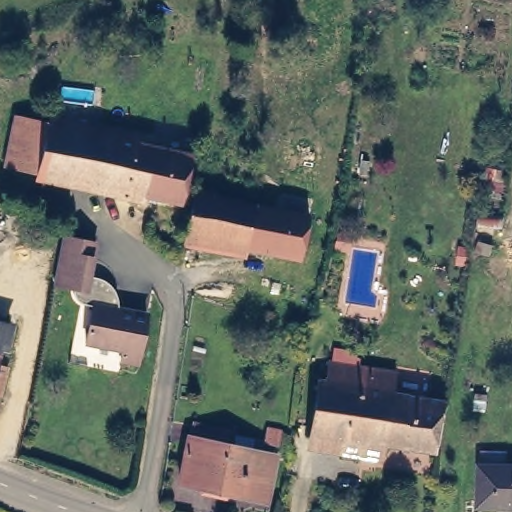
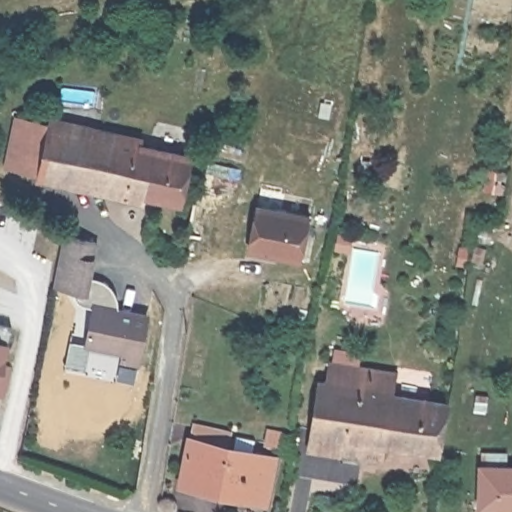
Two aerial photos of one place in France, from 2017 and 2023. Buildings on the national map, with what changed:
unchanged [(38,166),(13,160),(24,113),(50,118),(38,166)]
unchanged [(135,137),(137,139),(165,145),(168,135),(178,138),(177,147),(192,150),(181,198),(38,166),(50,118),(135,137)]
unchanged [(308,224),(302,266),(189,243),(197,202),(308,224)]
unchanged [(65,239),(97,244),(90,279),(92,279),(87,294),(76,291),(63,288),(57,286),(65,239)]
unchanged [(87,294),(92,279),(93,279),(94,279),(95,279),(95,280),(97,280),(98,280),(99,280),(100,281),(101,281),(102,281),(102,282),(103,282),(105,282),(105,283),(106,283),(107,283),(107,284),(108,284),(108,285),(110,285),(110,286),(111,286),(111,287),(112,287),(112,288),(113,289),(114,290),(115,290),(115,291),(115,292),(116,292),(117,293),(117,294),(117,295),(117,296),(118,296),(118,297),(118,298),(119,299),(120,300),(120,301),(120,302),(120,303),(120,304),(120,305),(120,306),(120,307),(120,308),(120,309),(120,310),(120,313),(152,319),(143,365),(127,362),(127,352),(92,345),(99,308),(98,308),(97,308),(95,308),(94,308),(93,308),(92,307),(91,307),(90,307),(89,307),(87,307),(85,306),(84,306),(83,306),(83,305),(82,305),(82,304),(80,304),(80,303),(79,302),(78,301),(78,300),(77,300),(77,299),(77,298),(77,297),(76,296),(76,295),(76,294),(76,293),(75,293),(76,292),(76,291),(87,294)]
unchanged [(17,340),(11,361),(4,360),(0,376),(0,336),(17,340)]
unchanged [(388,439),(386,456),(343,451),(343,439),(313,436),(319,380),(327,381),(328,364),(393,371),(392,393),(447,399),(442,446),(388,439)]
unchanged [(10,380),(3,407),(0,406),(0,376),(10,380)]
unchanged [(277,463),(265,509),(180,485),(192,444),(195,444),(197,438),(200,429),(235,439),(233,448),(232,451),(277,463)]
unchanged [(275,447),(263,444),(267,433),(278,436),(275,447)]
unchanged [(485,474),(512,473),(512,512),(487,512),(485,474)]

